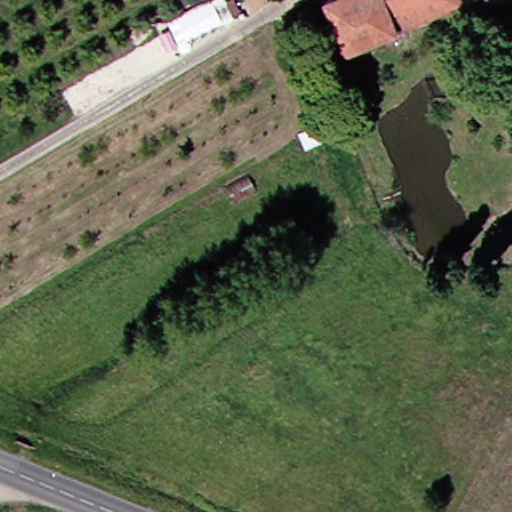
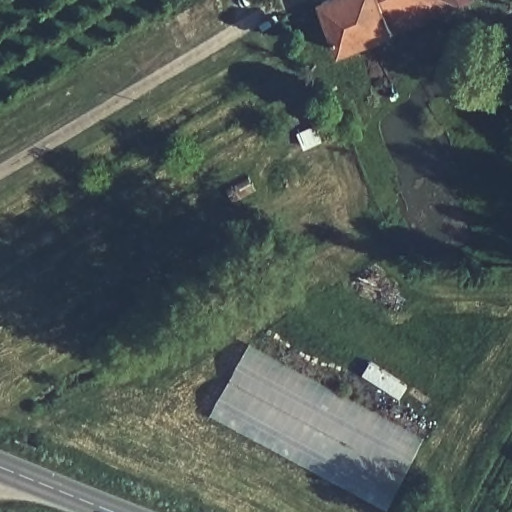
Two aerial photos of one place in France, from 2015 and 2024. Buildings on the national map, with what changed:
unchanged [(328,4),(337,0),(461,0),(463,5),(348,56),(328,4)]
new [(253,344),(426,437),(390,509),(213,414),(253,344)]

